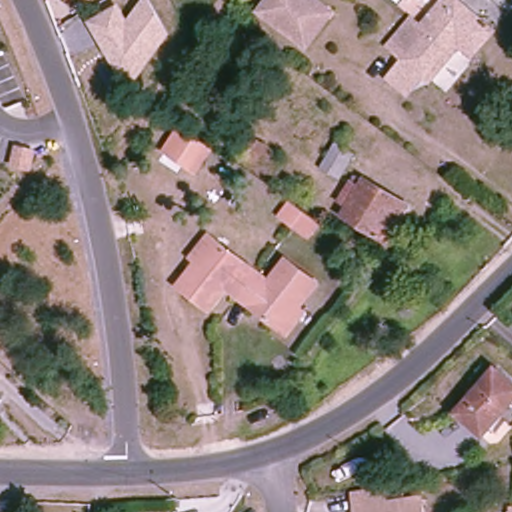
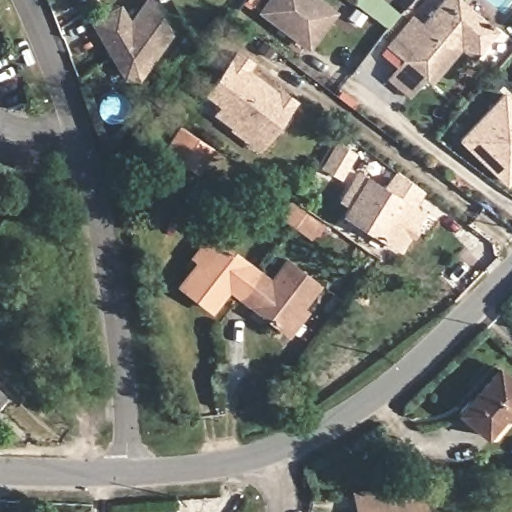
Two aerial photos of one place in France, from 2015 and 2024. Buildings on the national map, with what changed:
unchanged [(84,4),(82,0),(90,0),(84,4)]
unchanged [(144,0),(152,0),(172,31),(127,91),(87,21),(121,2),(130,20),(144,0)]
unchanged [(268,16),(280,0),(314,0),(331,12),(326,20),(307,45),(268,16)]
unchanged [(458,47),(431,83),(423,77),(387,47),(410,17),(423,27),(445,0),(449,0),(491,34),(477,52),(472,58),(458,47)]
demolished [(498,0),(512,0),(512,12),(505,20),(491,9),(498,0)]
new [(259,151),(227,129),(229,126),(211,114),(217,105),(201,94),(234,49),(252,62),(247,70),(275,90),(277,87),(295,100),(259,151)]
unchanged [(422,79),(406,99),(384,80),(400,60),(422,79)]
new [(456,141),(502,90),(512,99),(512,177),(505,185),(456,141)]
unchanged [(196,174),(161,151),(176,125),(213,146),(196,174)]
demolished [(257,126),(285,145),(272,162),(245,144),(257,126)]
unchanged [(335,147),(351,157),(338,178),(322,169),(335,147)]
demolished [(230,176),(245,155),(260,166),(246,186),(230,176)]
unchanged [(391,236),(387,243),(342,216),(348,205),(340,200),(348,184),(359,190),(364,181),(402,203),(410,207),(391,236)]
unchanged [(310,246),(291,234),(272,220),(286,201),(305,214),(323,227),(310,246)]
unchanged [(286,331),(275,323),(235,297),(224,290),(209,311),(177,289),(194,265),(188,261),(203,237),(214,245),(254,271),(267,280),(281,257),(310,278),(295,303),(301,307),(286,331)]
unchanged [(512,404),(486,435),(460,412),(495,371),(512,384),(512,404)]
unchanged [(1,398),(0,400),(0,397),(1,398)]
unchanged [(379,487),(381,501),(418,496),(421,512),(354,512),(351,492),(379,487)]

